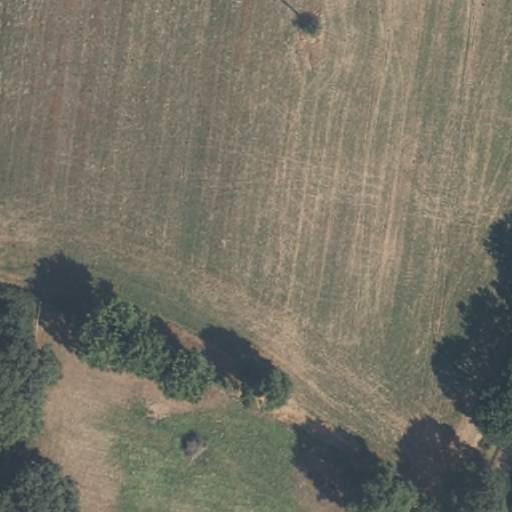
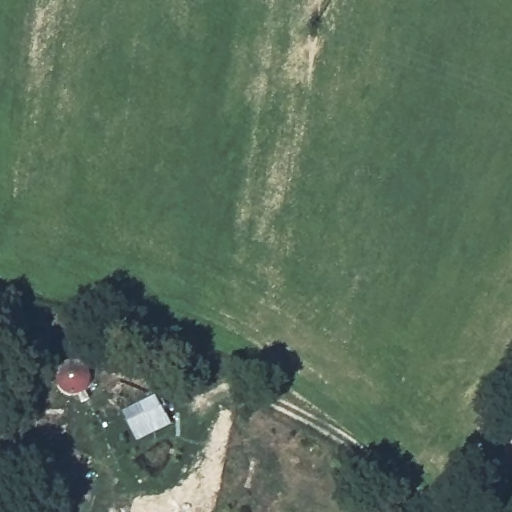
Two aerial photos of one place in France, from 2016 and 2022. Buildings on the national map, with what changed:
new [(157,394),(172,423),(136,442),(121,412),(157,394)]

